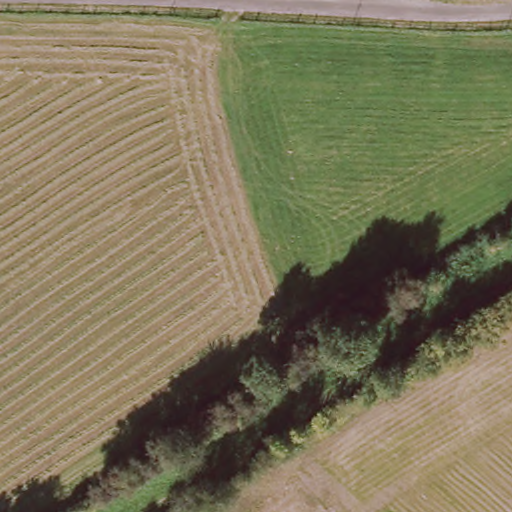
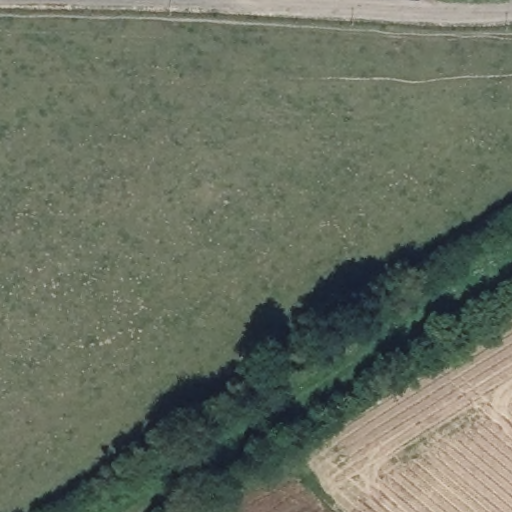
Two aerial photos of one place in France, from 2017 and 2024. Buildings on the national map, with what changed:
[]

